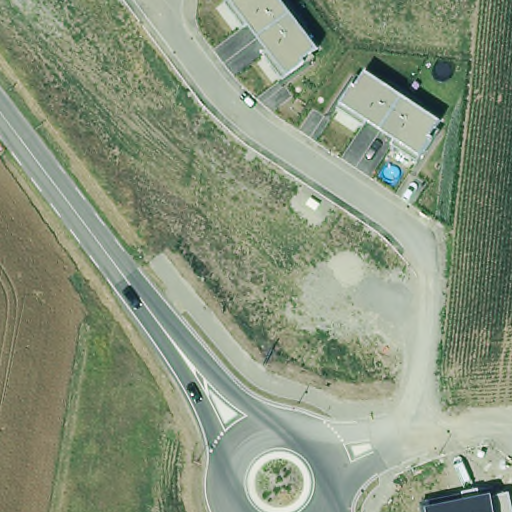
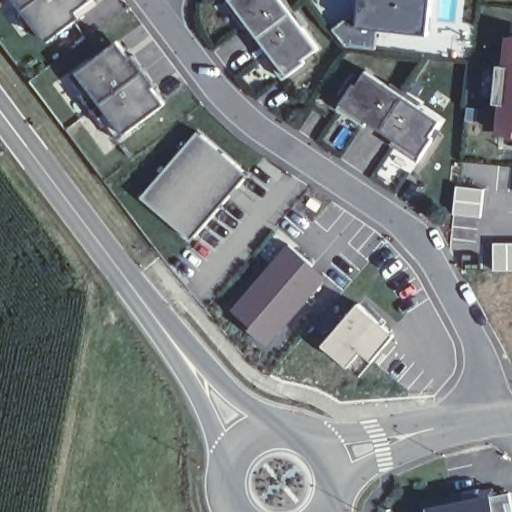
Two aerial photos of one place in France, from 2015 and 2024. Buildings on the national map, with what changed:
new [(81,16),(48,41),(18,0),(90,0),(77,10),(81,16)]
unchanged [(232,1),(231,0),(281,0),(318,49),(311,54),(315,57),(283,79),(265,54),(270,51),(248,24),(244,27),(227,3),(232,1)]
new [(379,27),(377,48),(347,44),(334,31),(346,18),(363,19),(364,0),(432,0),(430,30),(379,27)]
new [(497,137),(490,137),(492,107),(487,107),(490,68),(497,68),(500,38),(512,39),(512,150),(497,149),(497,137)]
new [(118,140),(72,78),(120,40),(131,57),(135,55),(156,86),(154,88),(165,104),(118,140)]
unchanged [(437,128),(440,130),(418,162),(390,144),(395,139),(368,120),(363,126),(338,109),(342,102),(353,85),(359,75),(363,78),(367,71),(440,121),(437,128)]
new [(193,239),(143,195),(196,131),(248,175),(193,239)]
new [(482,191),(480,218),(452,216),(454,189),(482,191)]
new [(492,245),(512,245),(512,274),(492,274),(492,245)]
new [(323,279),(267,348),(227,312),(285,246),(323,279)]
new [(358,302),(395,334),(375,360),(360,376),(347,367),(322,345),(358,302)]
unchanged [(496,496),(510,493),(512,505),(512,512),(423,512),(421,504),(495,487),(496,496)]

